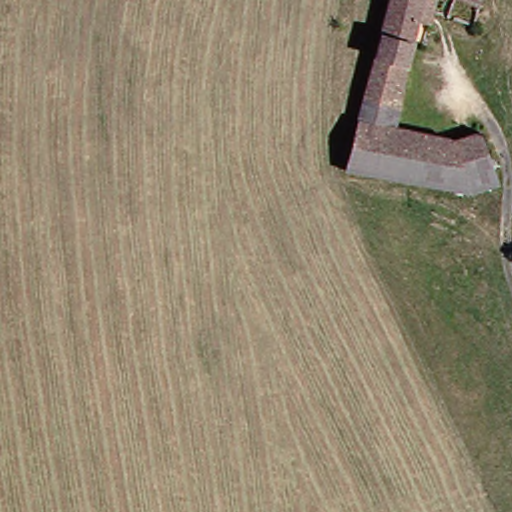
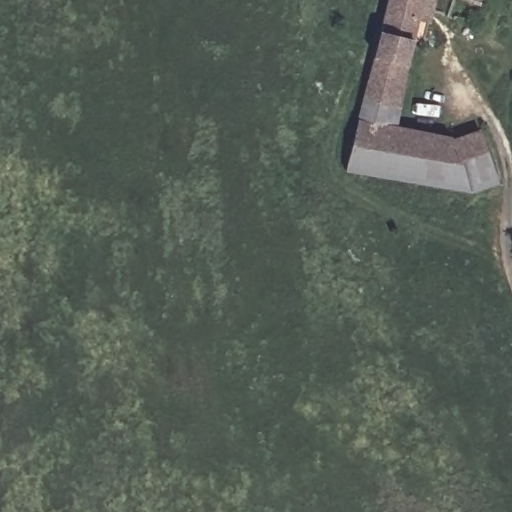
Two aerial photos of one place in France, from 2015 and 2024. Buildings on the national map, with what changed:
unchanged [(460,146),(470,199),(349,165),(394,0),(436,0),(402,127),(460,146)]
unchanged [(467,0),(482,0),(481,5),(467,0)]
unchanged [(460,146),(488,140),(500,193),(470,199),(460,146)]

